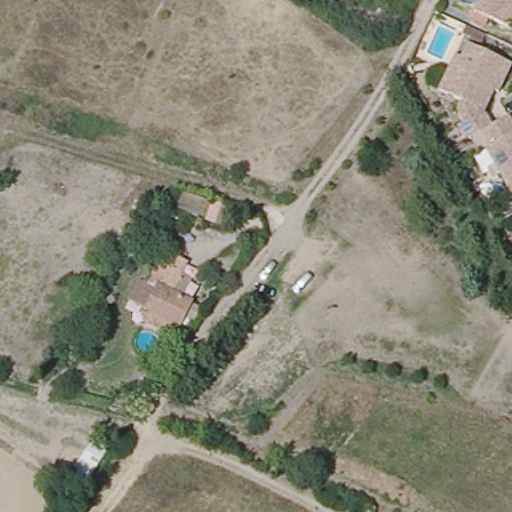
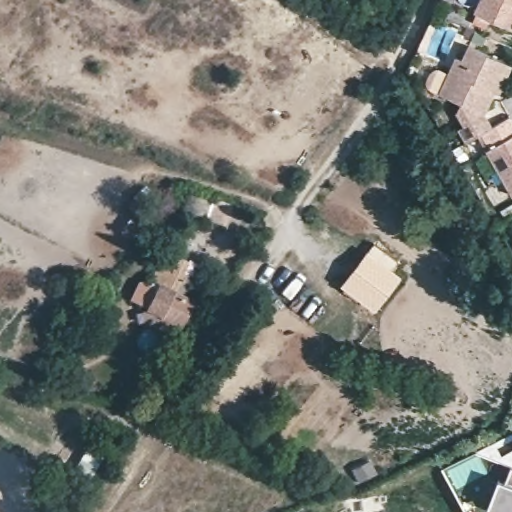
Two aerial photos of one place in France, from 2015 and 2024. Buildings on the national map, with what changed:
unchanged [(475,13),(481,0),(512,0),(512,28),(512,30),(475,13)]
unchanged [(492,122),(482,128),(474,132),(467,136),(459,123),(465,120),(457,106),(461,97),(440,88),(457,52),(462,54),(469,41),(511,60),(499,88),(495,87),(485,108),(492,122)]
unchanged [(491,143),(482,128),(492,122),(509,112),(512,117),(512,188),(487,145),(491,143)]
unchanged [(139,246),(119,232),(129,218),(149,231),(139,246)]
unchanged [(168,328),(142,315),(157,281),(150,278),(165,246),(187,256),(182,267),(191,272),(183,290),(193,294),(180,323),(177,322),(173,330),(168,328)]
new [(374,310),(342,286),(368,251),(400,277),(374,310)]
unchanged [(186,335),(180,330),(187,320),(193,324),(186,335)]
new [(505,479),(511,464),(512,464),(512,512),(497,512),(486,508),(499,477),(505,479)]

